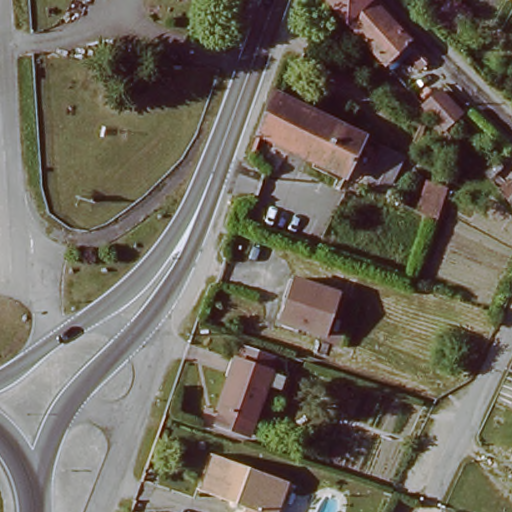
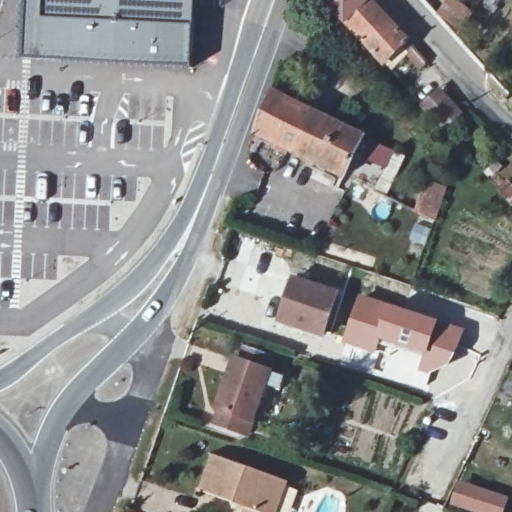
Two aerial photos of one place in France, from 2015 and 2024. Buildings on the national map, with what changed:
new [(25,11),(25,0),(195,0),(191,68),(23,60),(25,11)]
unchanged [(387,56),(369,39),(325,0),(372,0),(389,17),(408,36),(387,56)]
unchanged [(341,181),(253,138),(268,97),(290,36),(303,43),(282,104),(361,141),(341,181)]
new [(426,177),(448,185),(436,221),(413,211),(426,177)]
unchanged [(281,321),(293,280),(336,295),(321,335),(281,321)]
new [(359,293),(466,327),(457,353),(449,365),(432,373),(418,371),(422,356),(379,343),(376,354),(341,343),(359,293)]
unchanged [(214,425),(221,404),(215,401),(232,354),(266,366),(241,434),(214,425)]
unchanged [(240,512),(242,506),(194,491),(206,458),(288,486),(279,512),(240,512)]
new [(509,496),(504,512),(473,512),(448,504),(456,479),(509,496)]

